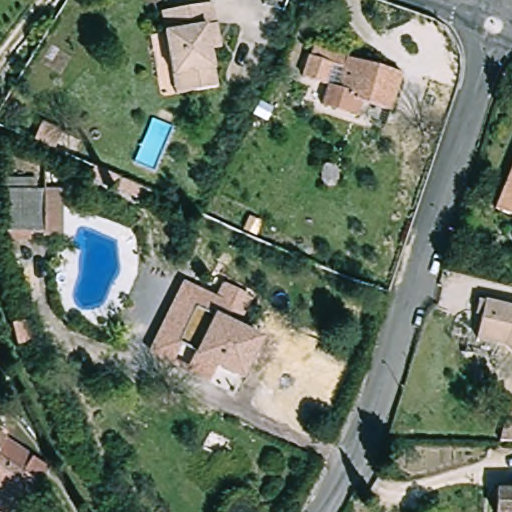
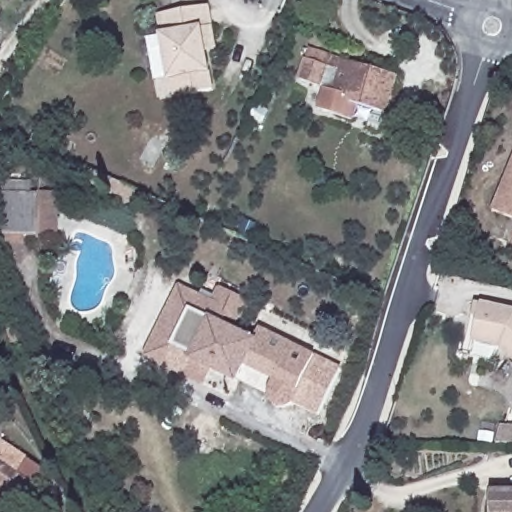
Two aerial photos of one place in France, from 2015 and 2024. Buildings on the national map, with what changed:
unchanged [(176,81),(162,16),(210,6),(215,28),(220,51),(211,53),(219,88),(195,94),(179,97),(176,81)]
unchanged [(382,107),(343,95),(338,109),(314,101),(319,84),(295,76),(302,53),(336,64),(339,54),(393,72),(382,107)]
unchanged [(499,210),(512,176),(512,216),(499,210)]
unchanged [(5,237),(2,196),(38,194),(56,193),(59,238),(41,239),(5,241),(5,237)]
unchanged [(215,302),(221,286),(252,301),(241,322),(227,317),(226,325),(257,340),(238,385),(215,375),(206,390),(141,357),(179,286),(215,302)]
unchanged [(505,343),(477,336),(487,299),(512,306),(512,350),(505,343)]
new [(293,343),(294,344),(317,355),(318,354),(343,367),(318,417),(294,405),(287,409),(279,408),(274,406),(270,402),(268,398),(268,389),(273,381),(246,367),(257,340),(255,339),(260,326),(293,343)]
unchanged [(5,407),(0,414),(0,399),(7,404),(5,407)]
unchanged [(496,444),(501,425),(512,425),(512,444),(496,444)]
unchanged [(41,487),(23,512),(0,512),(0,510),(7,500),(0,496),(0,436),(35,460),(24,475),(41,487)]
unchanged [(512,490),(512,512),(495,512),(496,489),(512,490)]

